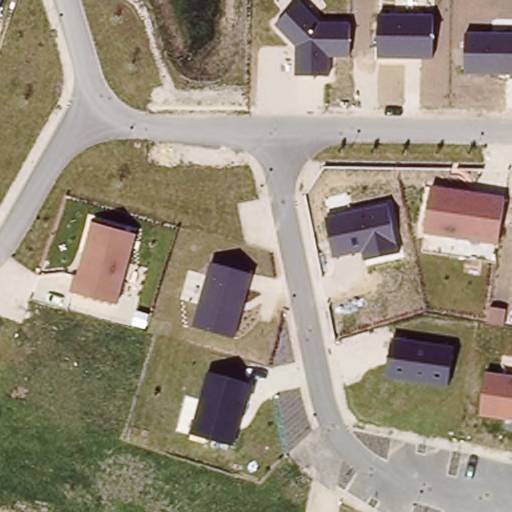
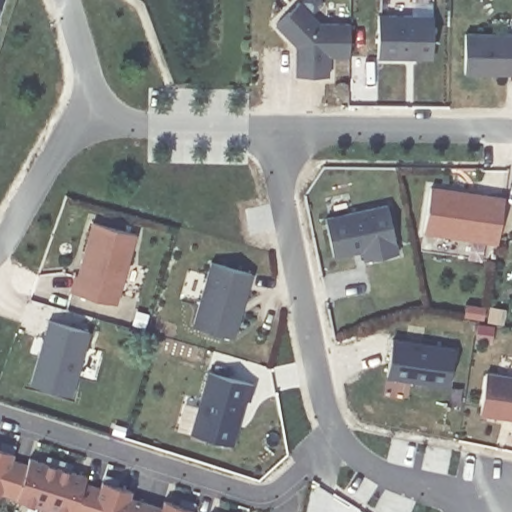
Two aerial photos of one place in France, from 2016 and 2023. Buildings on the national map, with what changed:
unchanged [(0,7),(0,0),(2,0),(0,7)]
unchanged [(297,46),(276,25),(300,2),(320,22),(350,23),(349,57),(327,57),(327,76),(295,76),(297,46)]
unchanged [(379,13),(433,15),(432,59),(378,59),(379,13)]
unchanged [(467,32),(512,34),(512,75),(466,75),(467,32)]
unchanged [(432,189),(505,199),(501,240),(425,231),(432,189)]
unchanged [(325,218),(390,207),(399,252),(365,260),(364,251),(334,258),(325,218)]
unchanged [(92,222),(135,235),(116,303),(72,292),(92,222)]
unchanged [(210,263),(252,275),(235,338),(193,326),(210,263)]
new [(70,396),(30,385),(47,320),(90,332),(70,396)]
unchanged [(392,337),(455,347),(447,385),(385,377),(392,337)]
unchanged [(487,371),(512,375),(512,420),(480,415),(487,371)]
unchanged [(209,372),(250,384),(234,445),(190,434),(209,372)]
new [(12,460),(27,465),(30,457),(87,475),(84,482),(100,486),(102,480),(132,490),(130,497),(162,506),(164,500),(195,510),(194,512),(55,512),(0,495),(0,448),(14,452),(12,460)]

